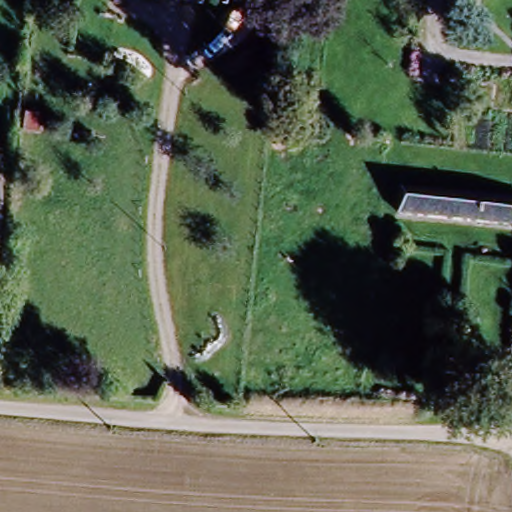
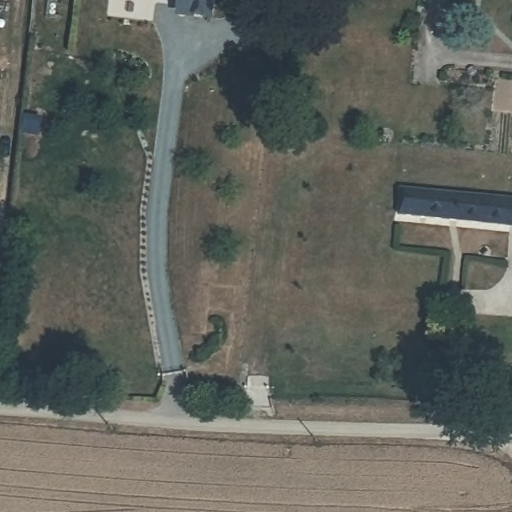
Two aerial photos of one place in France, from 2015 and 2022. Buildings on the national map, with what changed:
unchanged [(176,0),(196,0),(196,3),(176,0)]
unchanged [(405,219),(406,194),(512,199),(512,224),(405,219)]

